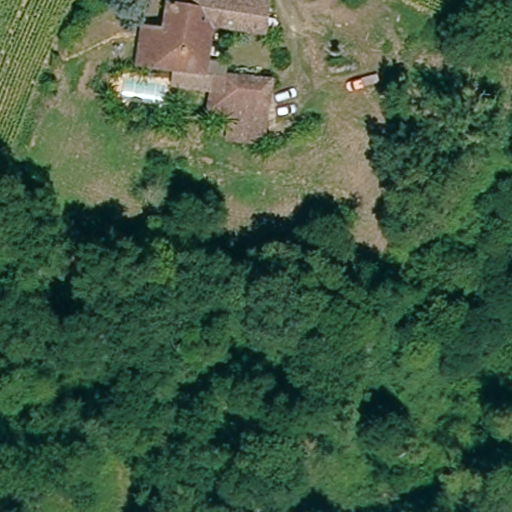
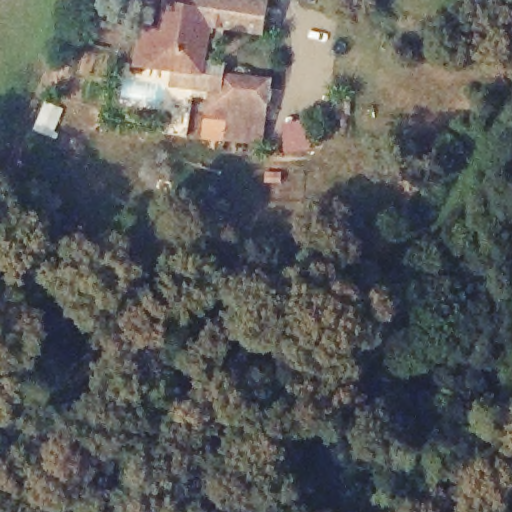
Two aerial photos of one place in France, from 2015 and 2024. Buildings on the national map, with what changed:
unchanged [(267,0),(261,34),(217,25),(209,74),(159,65),(164,37),(157,36),(159,22),(167,24),(171,1),(190,5),(191,0),(265,0),(267,0)]
unchanged [(260,89),(253,124),(200,113),(207,78),(260,89)]

